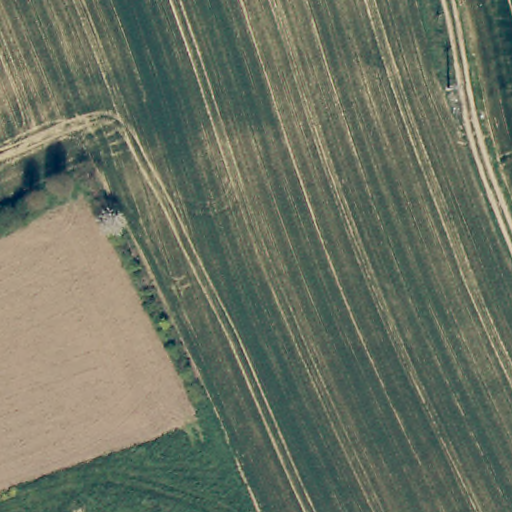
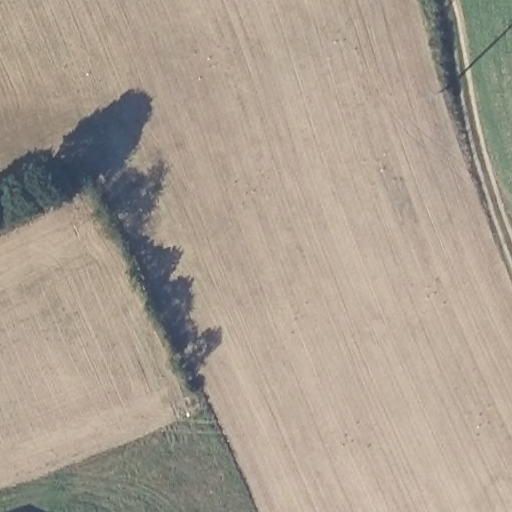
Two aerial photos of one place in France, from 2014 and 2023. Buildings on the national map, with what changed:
[]

